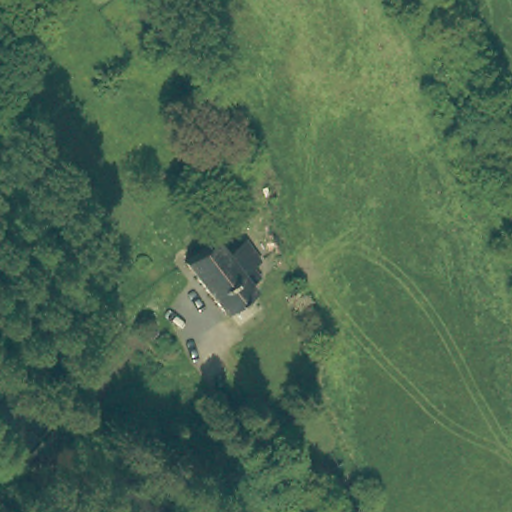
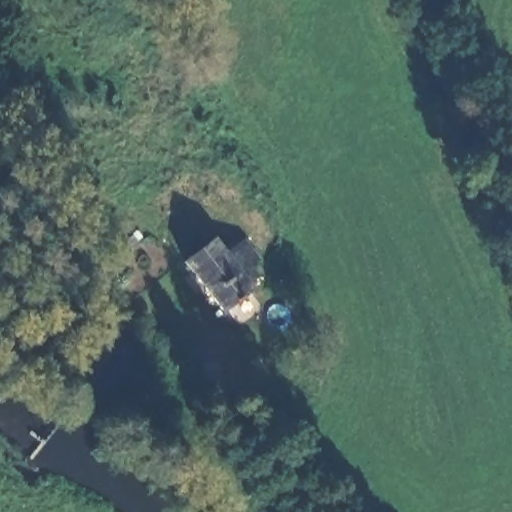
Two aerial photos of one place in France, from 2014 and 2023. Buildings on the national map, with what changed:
unchanged [(226,311),(187,258),(216,238),(227,255),(246,242),(260,261),(251,267),(260,279),(251,286),(255,291),(226,311)]
unchanged [(365,512),(375,504),(382,512),(365,512)]

